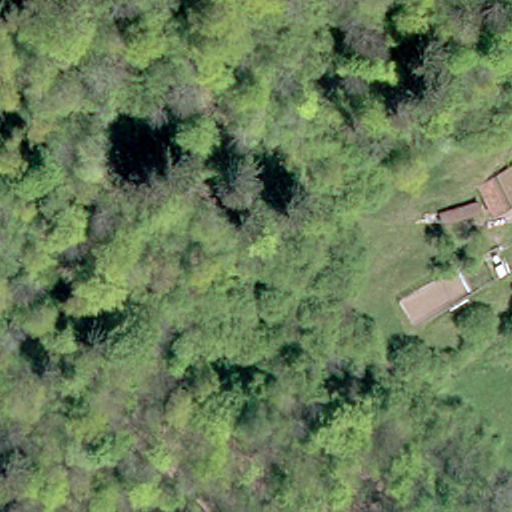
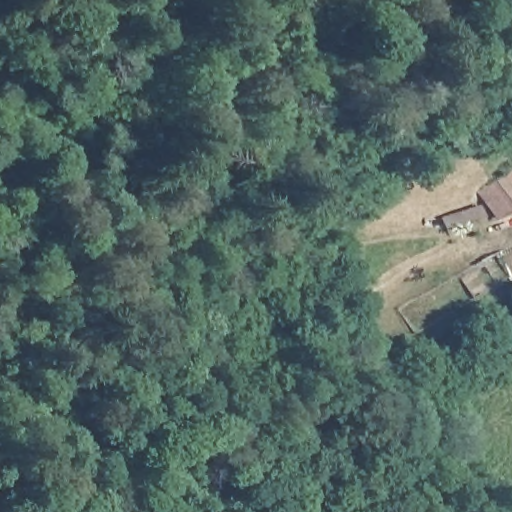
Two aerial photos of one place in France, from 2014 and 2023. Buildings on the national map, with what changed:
unchanged [(480,184),(510,169),(512,172),(512,200),(493,209),(480,184)]

